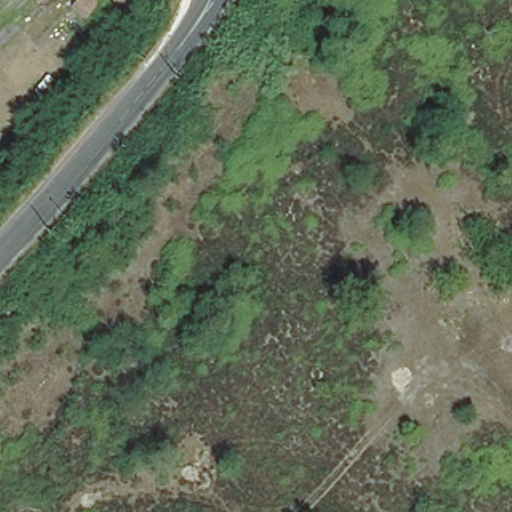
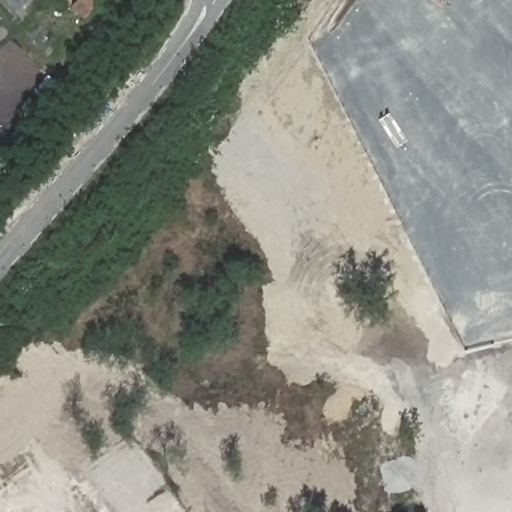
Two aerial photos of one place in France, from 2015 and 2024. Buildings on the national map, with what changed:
unchanged [(74,0),(109,0),(110,0),(85,24),(70,9),(75,1),(74,0)]

